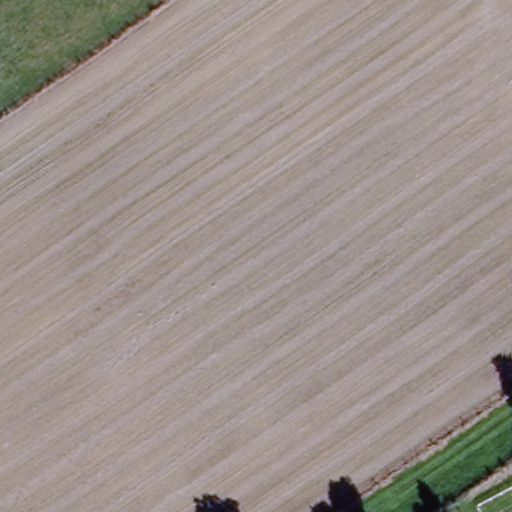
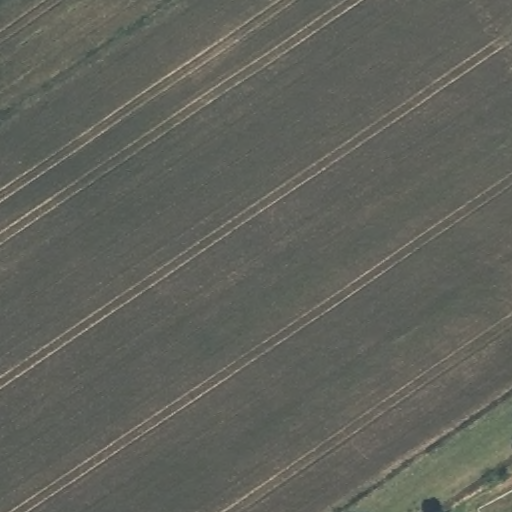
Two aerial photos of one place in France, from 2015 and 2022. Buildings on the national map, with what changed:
[]

